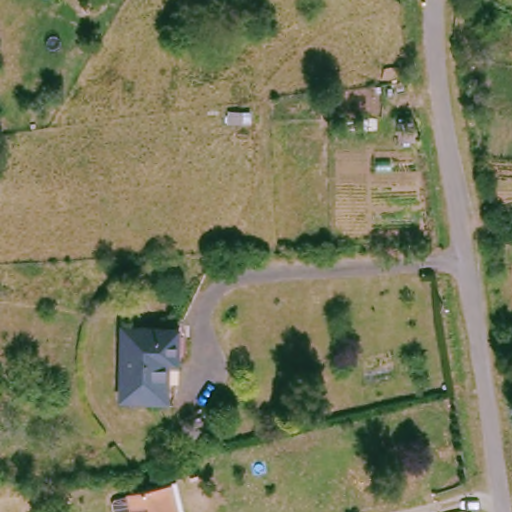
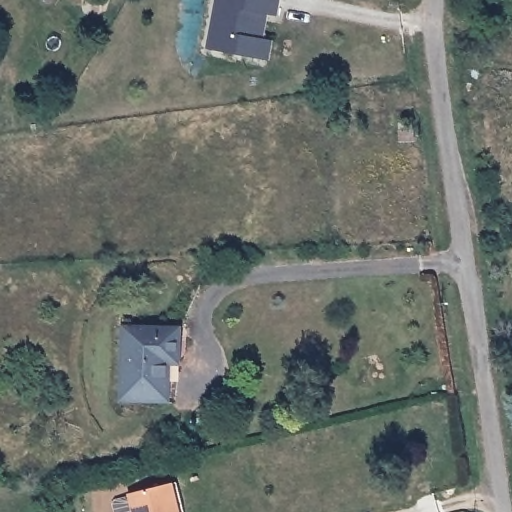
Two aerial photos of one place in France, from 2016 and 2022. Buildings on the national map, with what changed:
new [(270,13),(266,39),(274,40),(270,60),(207,48),(215,0),(282,0),(280,15),(270,13)]
unchanged [(181,326),(180,350),(167,350),(165,398),(122,398),(125,325),(181,326)]
unchanged [(182,507),(184,512),(116,512),(114,507),(117,502),(130,497),(130,495),(165,481),(175,509),(182,507)]

